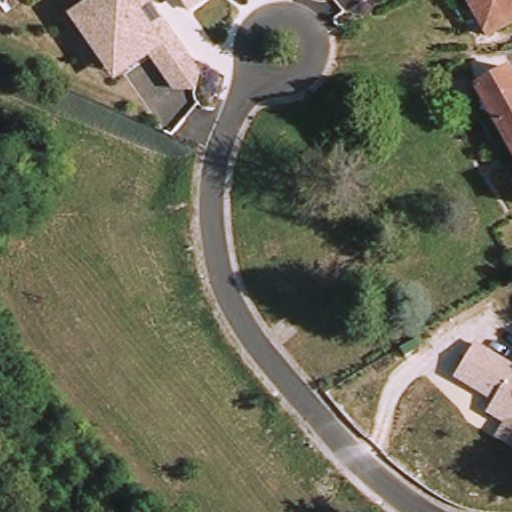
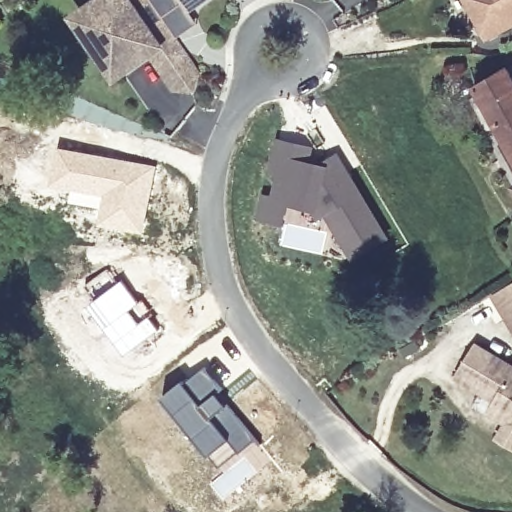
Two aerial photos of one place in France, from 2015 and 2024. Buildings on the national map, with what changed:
unchanged [(192,95),(173,93),(146,54),(123,70),(113,77),(101,58),(100,59),(86,39),(86,38),(74,19),(84,13),(101,0),(147,0),(185,55),(190,62),(192,66),(197,74),(192,95)]
unchanged [(216,0),(192,14),(182,0),(216,0)]
unchanged [(464,0),(512,0),(512,23),(486,39),(464,0)]
unchanged [(472,87),(504,68),(512,83),(512,159),(472,87)]
new [(260,192),(271,194),(273,181),(263,178),(273,137),(314,146),(311,161),(323,164),(324,160),(338,151),(390,239),(351,261),(324,217),(321,219),(318,215),(314,214),(288,207),(283,227),(254,220),(260,192)]
new [(56,146),(156,166),(144,235),(96,225),(99,210),(66,203),(69,191),(48,187),(56,146)]
demolished [(457,179),(477,164),(508,215),(488,228),(457,179)]
unchanged [(511,186),(512,185),(512,188),(511,186)]
new [(121,280),(140,304),(133,309),(105,329),(89,304),(121,280)]
new [(512,284),(512,328),(493,295),(512,284)]
new [(133,309),(140,318),(145,313),(158,329),(124,355),(105,329),(133,309)]
unchanged [(497,440),(506,426),(486,415),(494,400),(455,377),(475,342),(512,364),(512,449),(497,440)]
new [(204,367),(222,388),(217,391),(257,440),(223,467),(161,397),(184,380),(204,367)]

